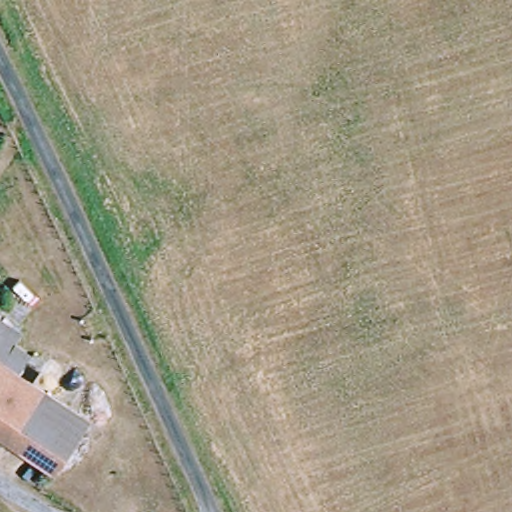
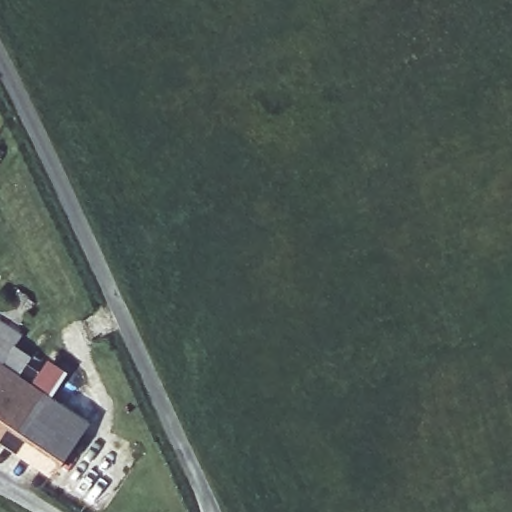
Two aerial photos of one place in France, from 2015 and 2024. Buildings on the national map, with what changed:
unchanged [(20,332),(2,359),(22,372),(30,359),(42,367),(33,380),(90,419),(55,469),(0,433),(0,320),(20,332)]

